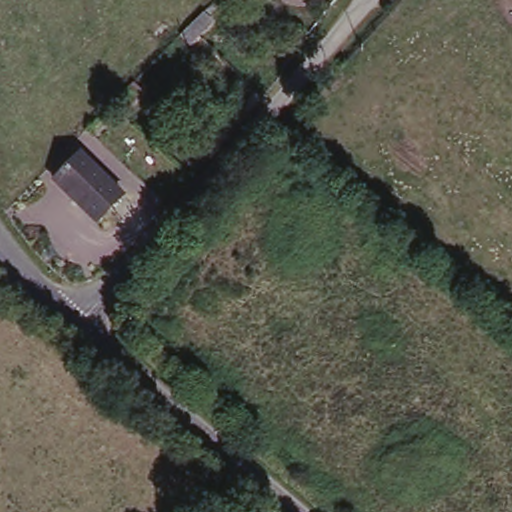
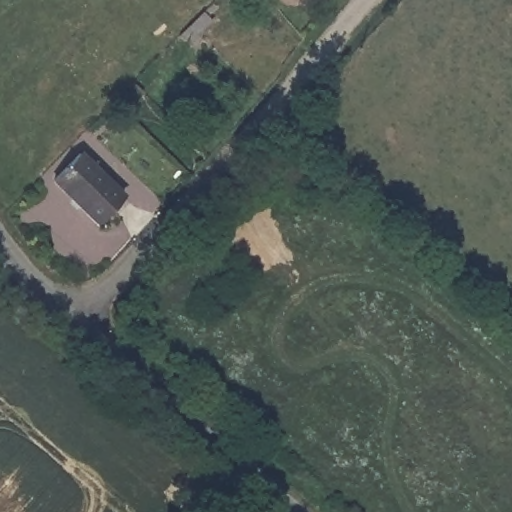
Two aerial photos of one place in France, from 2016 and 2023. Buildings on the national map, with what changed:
unchanged [(72,153),(119,193),(89,223),(44,182),(72,153)]

